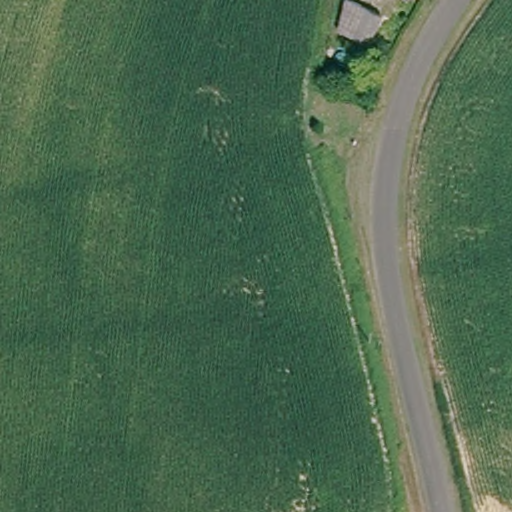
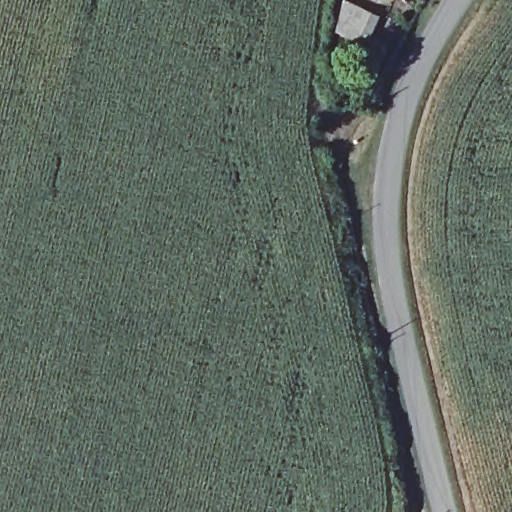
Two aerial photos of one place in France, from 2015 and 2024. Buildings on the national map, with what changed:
unchanged [(384,13),(370,40),(343,26),(356,0),(359,0),(384,13)]

